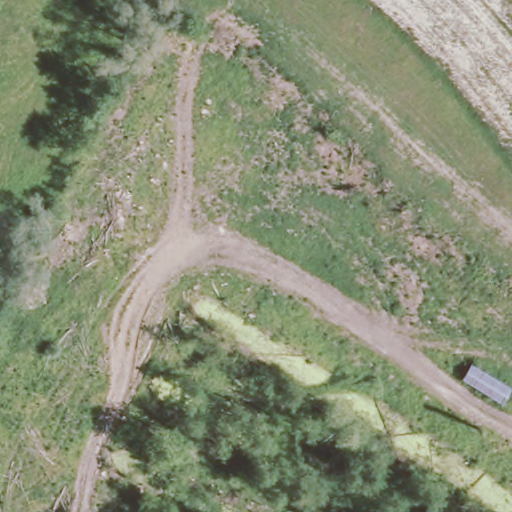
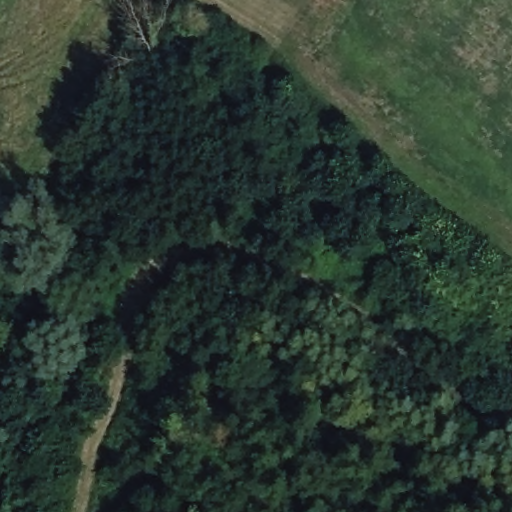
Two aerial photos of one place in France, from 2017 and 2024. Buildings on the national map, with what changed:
unchanged [(456,394),(466,379),(502,403),(491,417),(456,394)]

